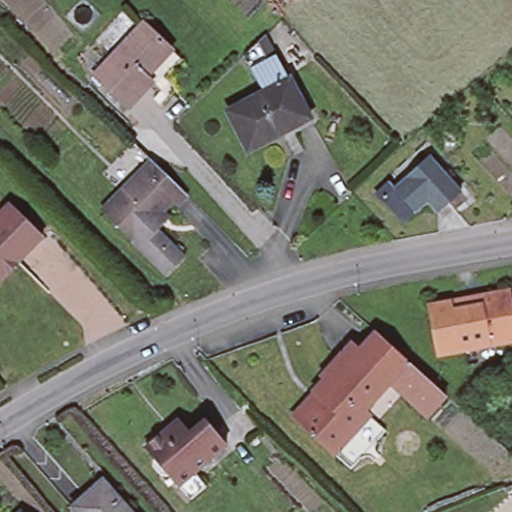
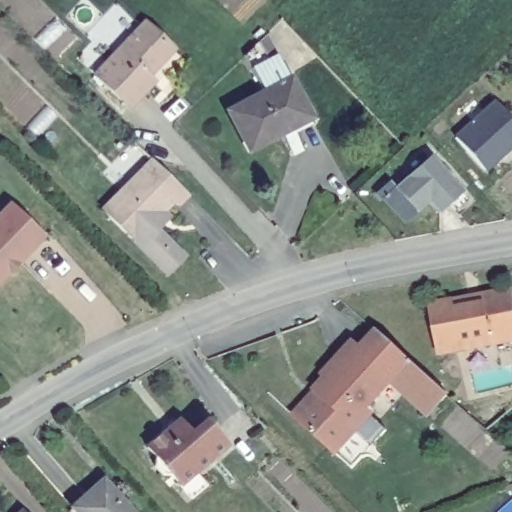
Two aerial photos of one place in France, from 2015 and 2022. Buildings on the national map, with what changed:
unchanged [(150,87),(144,80),(137,87),(105,52),(139,19),(165,47),(178,60),(150,87)]
unchanged [(105,52),(137,87),(120,105),(85,70),(105,52)]
unchanged [(254,76),(280,62),(289,79),(312,121),(249,153),(227,112),(263,93),(254,76)]
new [(512,117),(512,150),(490,172),(458,136),(497,101),(512,117)]
unchanged [(147,158),(185,195),(174,206),(168,200),(150,217),(120,186),(137,169),(147,158)]
unchanged [(431,158),(462,193),(438,214),(428,203),(417,212),(405,222),(385,199),(396,189),(431,158)]
unchanged [(120,186),(150,217),(128,240),(97,209),(120,186)]
unchanged [(15,202),(50,235),(27,258),(0,231),(0,217),(15,202)]
unchanged [(0,285),(0,284),(0,231),(27,258),(0,285)]
unchanged [(509,293),(512,308),(512,343),(440,357),(430,308),(451,304),(480,299),(509,293)]
unchanged [(315,384),(358,342),(362,346),(378,330),(444,399),(426,416),(392,380),(363,408),(368,413),(331,448),(298,413),(292,406),(315,384)]
unchanged [(384,429),(347,465),(331,448),(368,413),(384,429)]
unchanged [(182,421),(193,432),(206,422),(227,447),(180,486),(172,478),(163,476),(155,468),(156,459),(148,450),(182,421)]
unchanged [(129,512),(73,512),(105,484),(129,512)]

